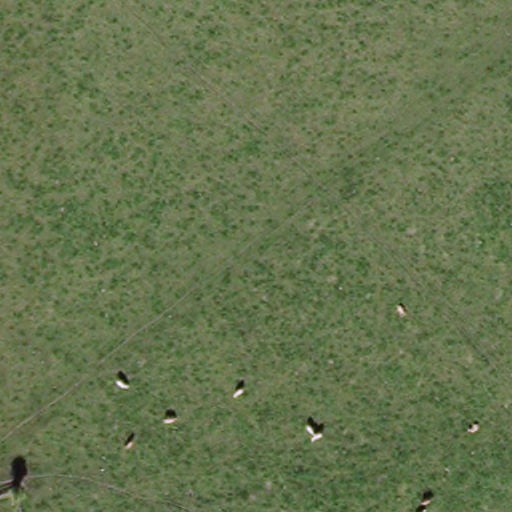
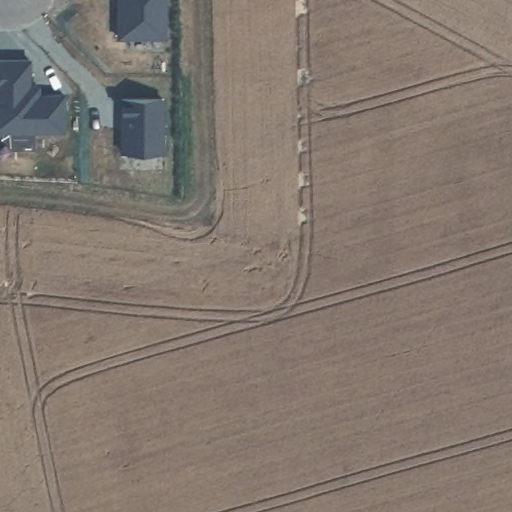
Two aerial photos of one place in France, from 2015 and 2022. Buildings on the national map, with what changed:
new [(168,42),(119,41),(119,0),(169,0),(168,42)]
new [(30,66),(30,92),(39,92),(39,105),(48,105),(48,100),(65,101),(65,137),(0,137),(0,65),(30,66)]
new [(124,136),(126,136),(126,121),(124,121),(124,103),(164,104),(164,156),(124,156),(124,136)]

